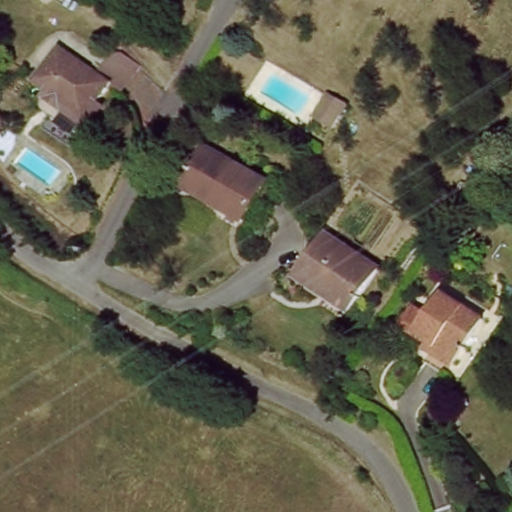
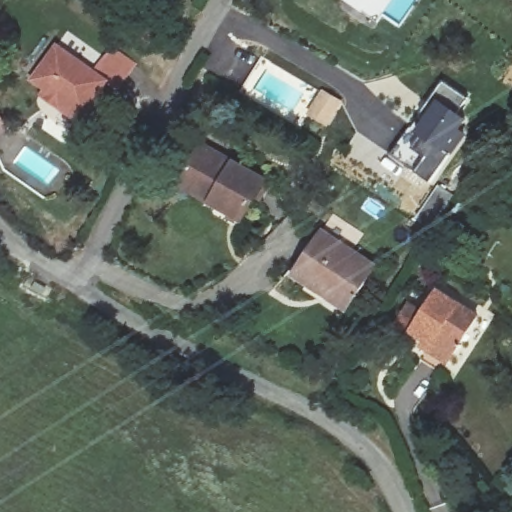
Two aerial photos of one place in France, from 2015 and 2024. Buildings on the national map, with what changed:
unchanged [(32,93),(56,57),(80,73),(100,46),(123,62),(105,90),(95,83),(73,119),(32,93)]
new [(422,160),(404,147),(399,156),(390,150),(409,127),(443,81),(471,99),(461,113),(467,118),(465,124),(471,129),(453,157),(431,185),(408,169),(412,160),(419,164),(422,160)]
new [(320,88),(344,102),(328,129),(304,114),(320,88)]
demolished [(351,137),(330,126),(336,114),(356,125),(351,137)]
unchanged [(17,144),(0,153),(0,127),(5,124),(17,144)]
unchanged [(267,179),(245,219),(196,193),(181,185),(191,168),(204,144),(267,179)]
unchanged [(421,225),(428,212),(438,193),(449,199),(439,218),(431,231),(421,225)]
unchanged [(303,287),(309,279),(295,270),(318,232),(372,265),(346,312),(303,287)]
unchanged [(482,311),(448,368),(416,348),(421,338),(411,332),(396,323),(407,302),(423,311),(439,285),(482,311)]

